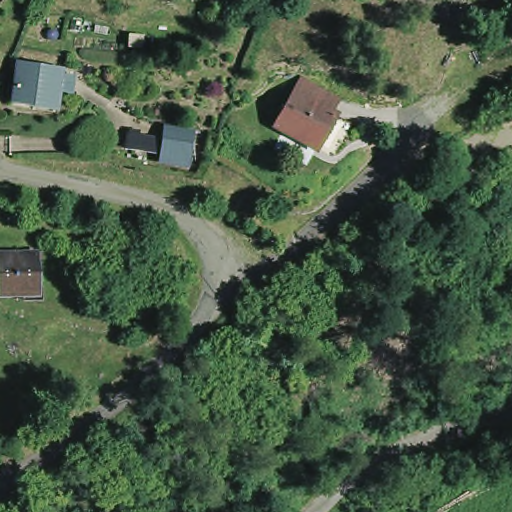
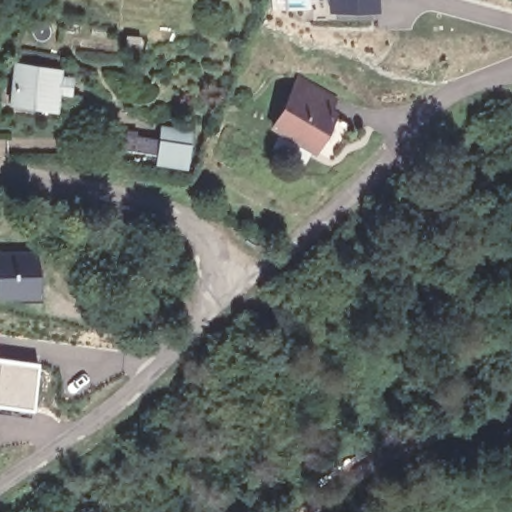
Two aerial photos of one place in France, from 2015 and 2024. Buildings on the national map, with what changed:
new [(337,21),(336,11),(320,12),(319,0),(378,0),(379,7),(369,8),(370,18),(337,21)]
unchanged [(54,107),(39,105),(38,111),(14,108),(20,69),(59,76),(54,107)]
unchanged [(330,117),(333,119),(310,152),(274,127),(307,79),(340,102),(330,117)]
unchanged [(158,165),(163,143),(165,132),(194,137),(192,149),(188,171),(158,165)]
unchanged [(35,259),(36,301),(0,302),(0,260),(35,259)]
new [(37,366),(34,409),(0,405),(0,361),(37,366)]

